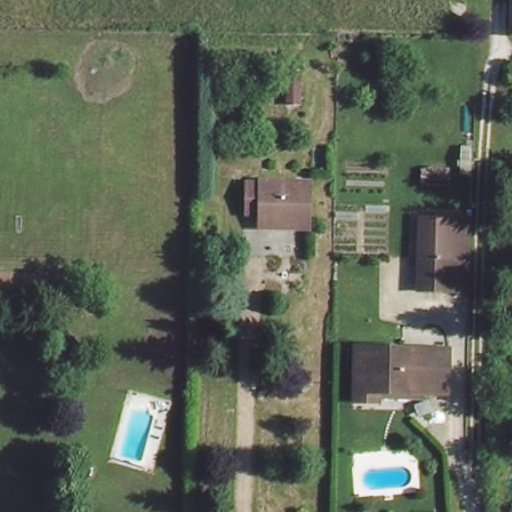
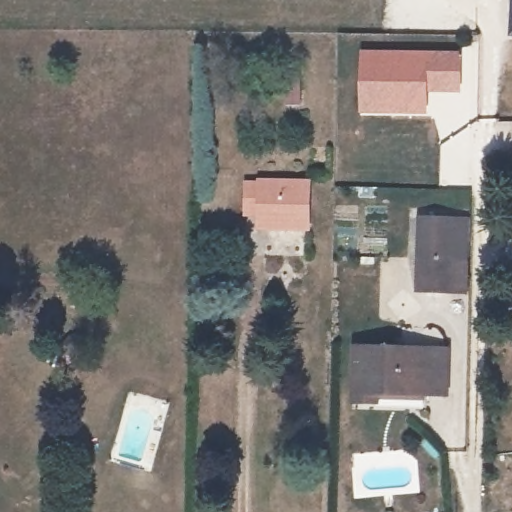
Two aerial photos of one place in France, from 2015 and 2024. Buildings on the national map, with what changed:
demolished [(469,2),(469,0),(484,0),(484,2),(469,2)]
new [(359,49),(462,51),(463,94),(429,94),(429,115),(358,115),(359,49)]
new [(301,73),(302,104),(281,105),(280,75),(301,73)]
unchanged [(264,211),(246,211),(249,179),(266,180),(314,180),(313,225),(280,224),(264,224),(264,211)]
unchanged [(453,286),(425,285),(426,212),(454,214),(454,254),(472,255),(471,287),(453,286)]
unchanged [(375,391),(372,398),(351,397),(353,342),(454,347),(453,392),(375,391)]

